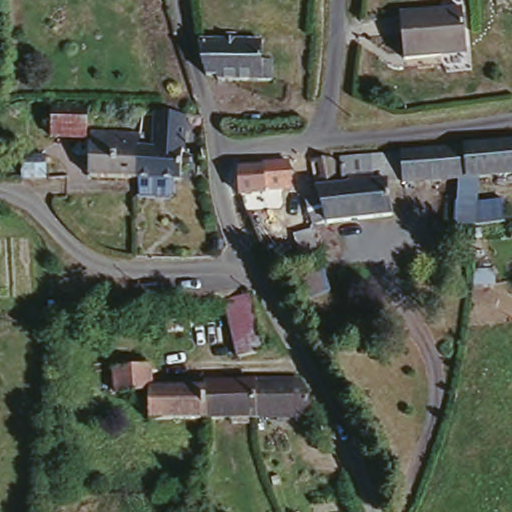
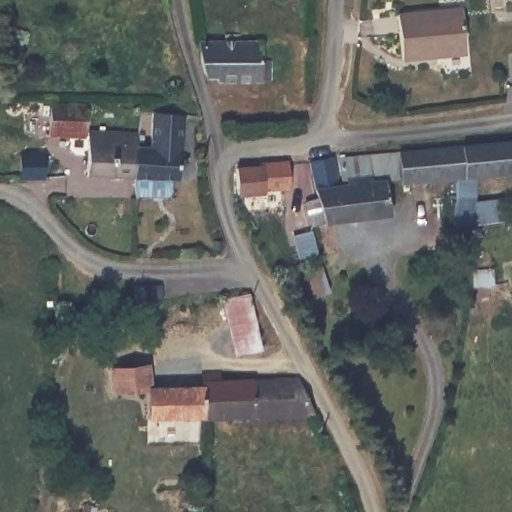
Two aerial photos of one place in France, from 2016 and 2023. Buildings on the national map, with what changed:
unchanged [(440,55),(403,60),(397,16),(458,7),(464,46),(465,52),(440,55)]
unchanged [(194,38),(253,39),(253,57),(264,59),(264,80),(215,78),(215,74),(203,74),(194,38)]
unchanged [(65,99),(86,100),(84,130),(48,130),(49,99),(65,99)]
unchanged [(91,125),(134,125),(134,142),(132,170),(87,171),(91,125)]
unchanged [(463,143),(512,139),(512,175),(466,177),(463,143)]
unchanged [(134,142),(176,142),(176,147),(173,170),(132,170),(134,142)]
unchanged [(307,202),(325,200),(318,156),(336,155),(340,184),(345,184),(340,154),(463,143),(466,177),(452,179),(403,184),(388,184),(390,216),(328,226),(311,229),(307,202)]
unchanged [(18,151),(40,151),(41,176),(29,176),(18,176),(18,151)]
unchanged [(289,184),(264,186),(263,193),(238,194),(235,168),(257,166),(257,161),(288,160),(289,184)]
unchanged [(473,196),(473,222),(453,223),(452,199),(473,196)]
unchanged [(262,343),(235,347),(222,289),(248,285),(262,343)]
unchanged [(109,365),(145,363),(147,390),(112,393),(109,365)]
unchanged [(200,386),(200,373),(221,375),(222,385),(297,380),(315,415),(202,418),(150,420),(147,390),(200,386)]

